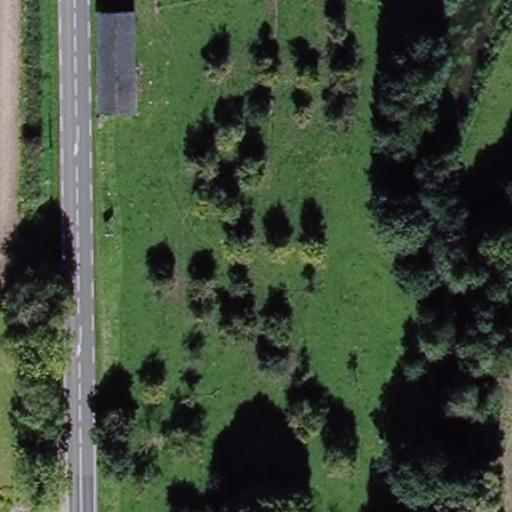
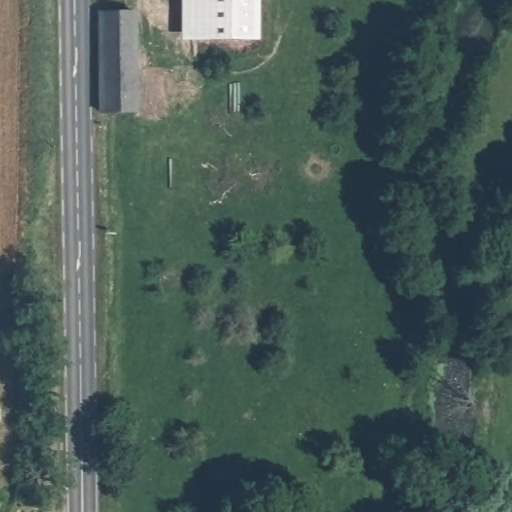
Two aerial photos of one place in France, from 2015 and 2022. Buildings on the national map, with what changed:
new [(256,44),(181,46),(182,0),(257,0),(256,44)]
unchanged [(138,111),(101,111),(101,19),(138,19),(138,111)]

